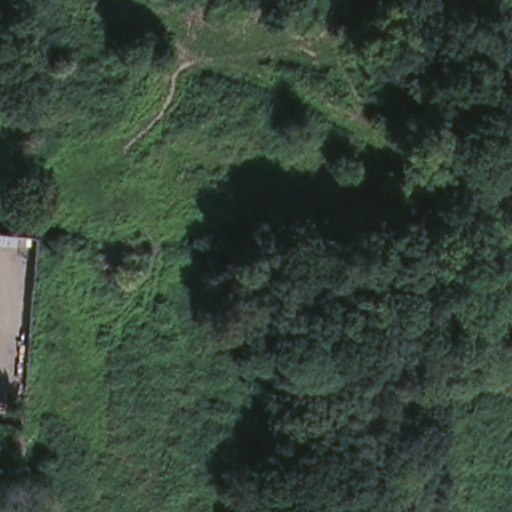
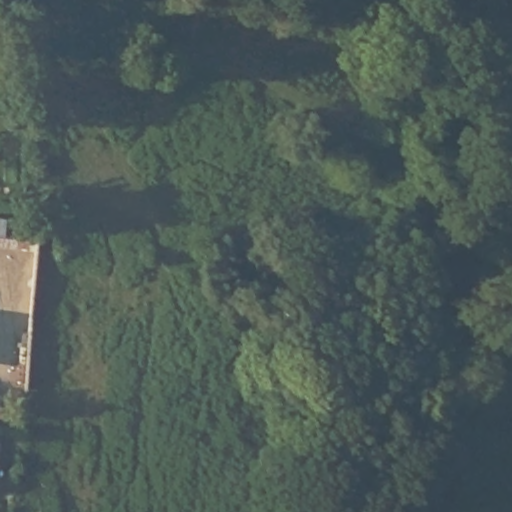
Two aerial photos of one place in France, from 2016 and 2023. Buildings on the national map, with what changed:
[]

